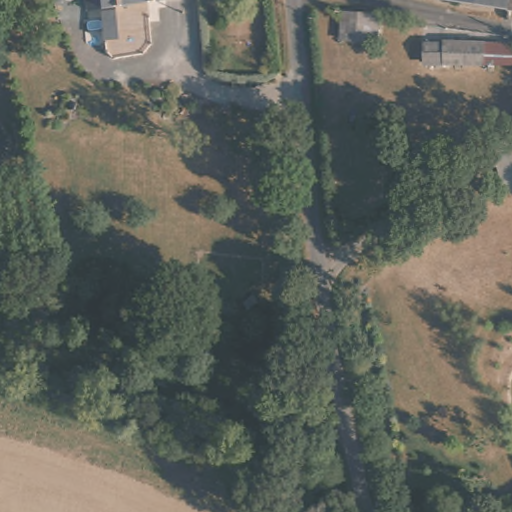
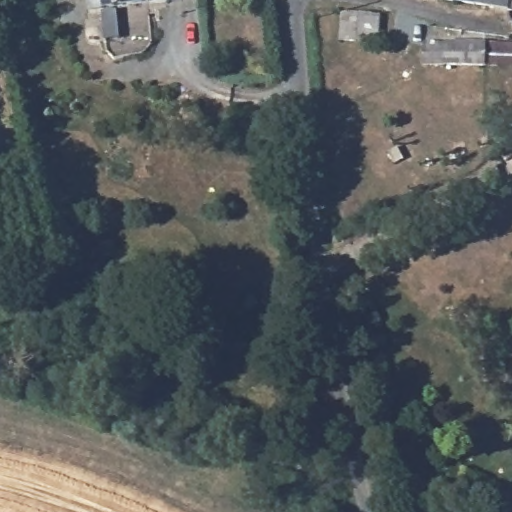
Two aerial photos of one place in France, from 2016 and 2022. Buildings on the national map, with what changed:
unchanged [(89,0),(167,0),(91,11),(89,0)]
unchanged [(438,0),(511,0),(510,8),(438,0)]
unchanged [(511,0),(512,0),(512,9),(510,8),(511,0)]
unchanged [(116,11),(121,39),(108,41),(104,13),(116,11)]
unchanged [(371,19),(367,46),(353,43),(356,16),(371,19)]
unchanged [(500,53),(497,63),(487,60),(484,70),(461,63),(445,58),(446,57),(431,52),(437,34),(457,40),(500,53)]

